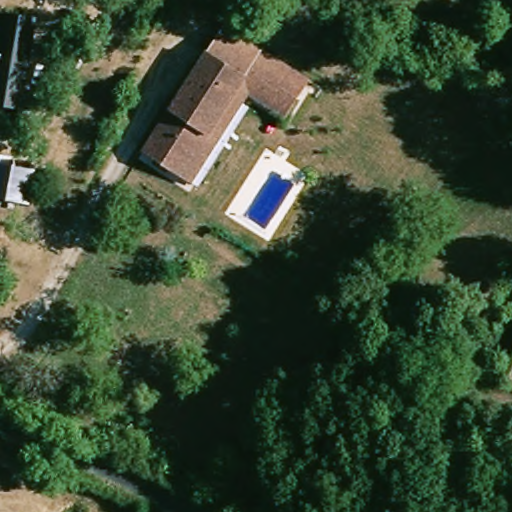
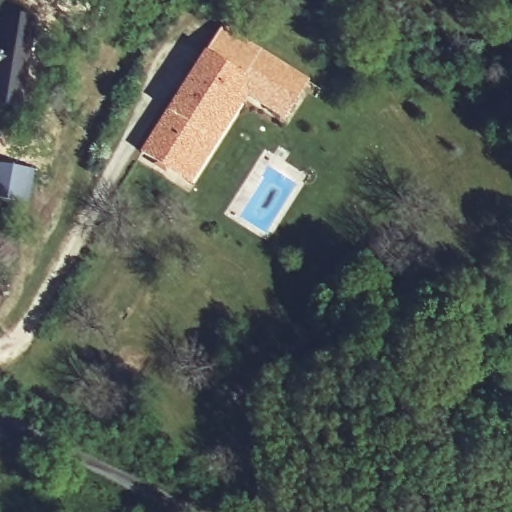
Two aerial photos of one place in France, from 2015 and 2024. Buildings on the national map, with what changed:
unchanged [(35,18),(25,107),(0,105),(0,49),(0,45),(4,15),(35,18)]
unchanged [(233,78),(180,166),(145,145),(190,69),(219,20),(304,72),(283,108),(248,87),(233,78)]
unchanged [(248,87),(194,175),(180,166),(233,78),(248,87)]
unchanged [(36,204),(0,200),(0,165),(39,168),(36,204)]

